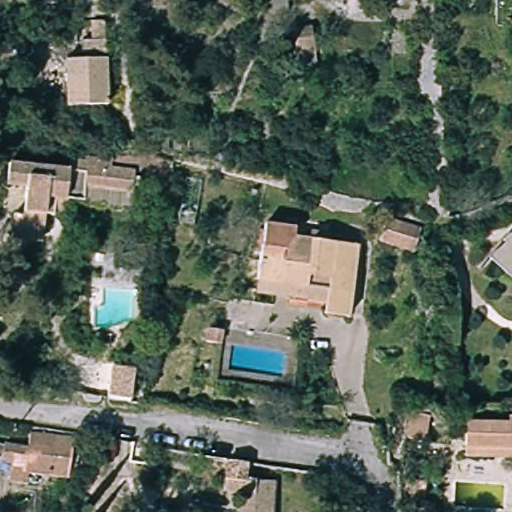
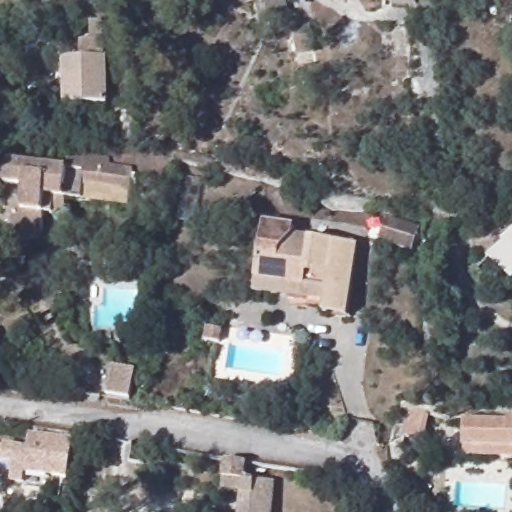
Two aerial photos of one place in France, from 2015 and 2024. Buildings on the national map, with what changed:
unchanged [(288,11),(288,12),(265,13),(264,5),(245,4),(245,0),(287,0),(288,11)]
unchanged [(501,0),(512,0),(512,2),(501,0)]
unchanged [(111,100),(66,103),(63,58),(108,55),(111,100)]
unchanged [(138,174),(133,210),(47,198),(41,240),(13,236),(17,213),(23,214),(27,189),(5,186),(8,165),(75,175),(76,164),(138,174)]
unchanged [(395,244),(397,217),(407,221),(433,228),(433,245),(395,244)]
unchanged [(263,283),(270,226),(301,230),(300,235),(315,237),(315,241),(363,247),(353,318),(327,316),(328,305),(261,296),(263,283)]
unchanged [(504,237),(505,235),(512,229),(512,275),(490,255),(506,239),(504,237)]
unchanged [(261,316),(259,331),(237,327),(239,314),(261,316)]
unchanged [(402,435),(406,407),(426,412),(421,438),(402,435)]
unchanged [(504,413),(512,412),(512,454),(460,453),(462,417),(503,418),(504,413)]
unchanged [(5,444),(5,442),(29,445),(30,431),(74,436),(69,477),(30,473),(26,483),(11,481),(12,463),(3,460),(3,457),(0,456),(0,443),(5,444)]
unchanged [(244,473),(256,476),(275,477),(273,512),(238,512),(240,489),(222,487),(231,461),(247,465),(244,473)]

